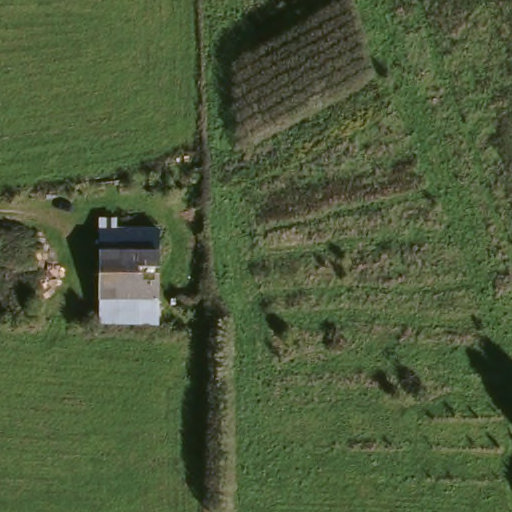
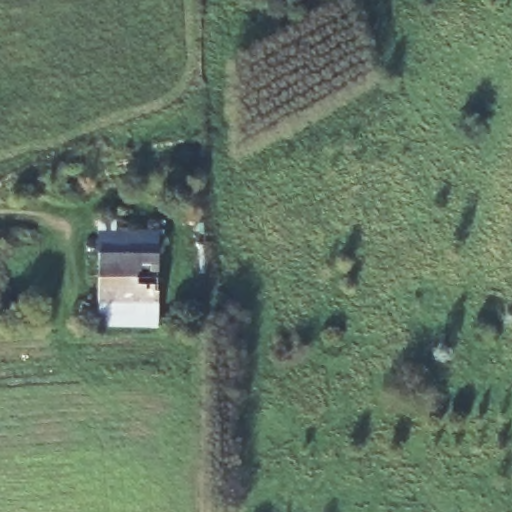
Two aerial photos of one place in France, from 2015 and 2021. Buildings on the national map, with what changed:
unchanged [(159,254),(98,254),(98,218),(116,218),(117,230),(159,230),(159,254)]
unchanged [(157,302),(157,327),(97,327),(97,300),(98,254),(159,254),(157,302)]

